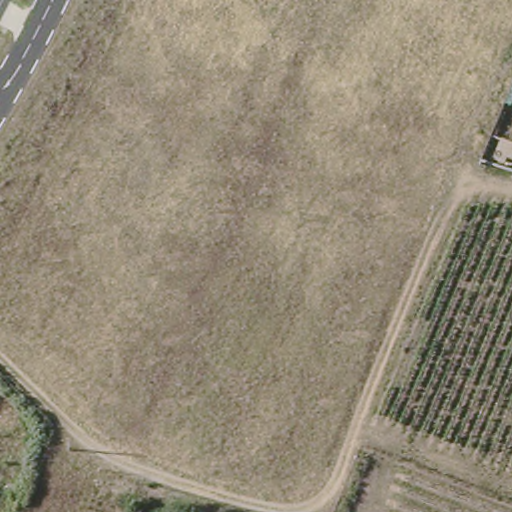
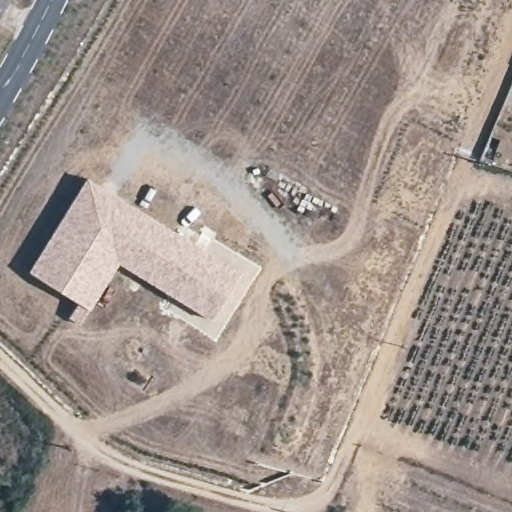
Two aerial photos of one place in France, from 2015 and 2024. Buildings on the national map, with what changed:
new [(93,179),(241,274),(213,317),(124,260),(92,310),(33,272),(93,179)]

